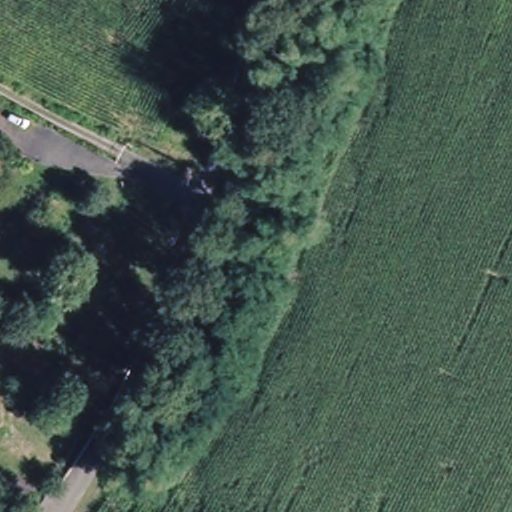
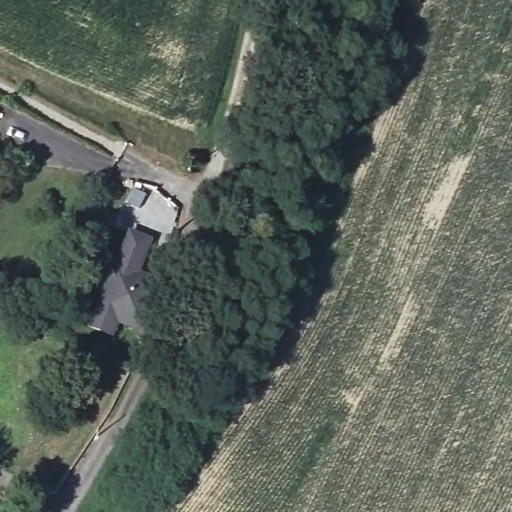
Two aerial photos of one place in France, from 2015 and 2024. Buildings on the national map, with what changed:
new [(112,261),(115,262),(129,230),(149,239),(138,265),(135,271),(162,283),(141,331),(113,319),(107,333),(84,322),(90,309),(112,261)]

